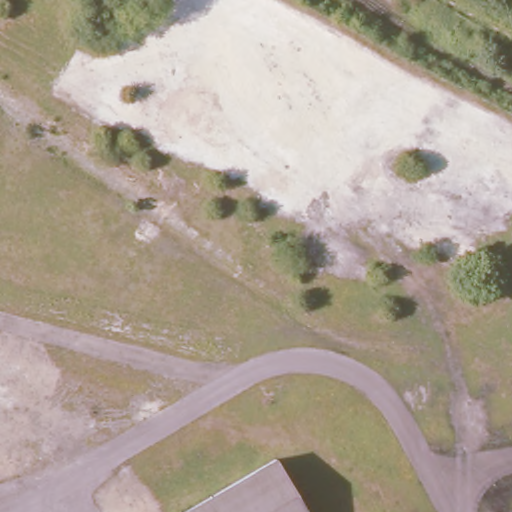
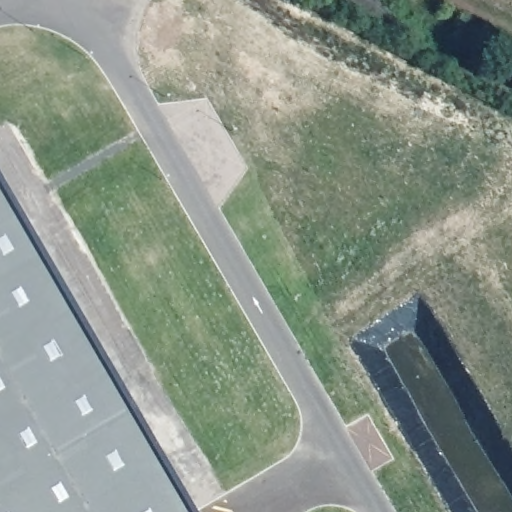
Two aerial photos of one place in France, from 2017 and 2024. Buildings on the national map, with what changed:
new [(0,512),(0,193),(185,512),(0,512)]
demolished [(305,512),(170,512),(271,454),(305,512)]

